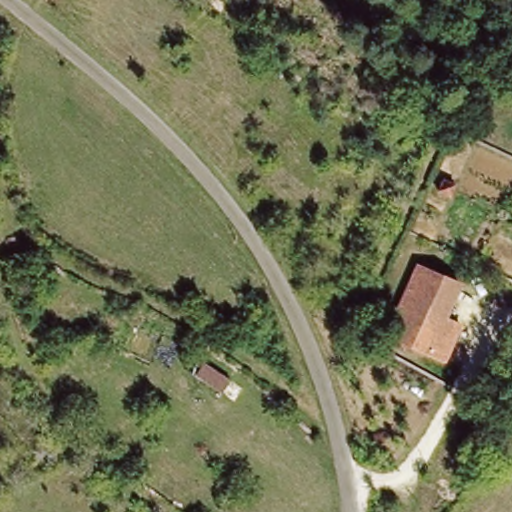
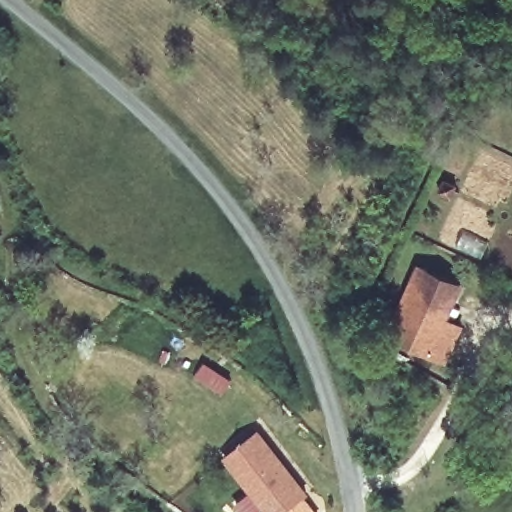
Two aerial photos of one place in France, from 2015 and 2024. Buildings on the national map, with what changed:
unchanged [(456,200),(445,195),(451,184),(463,189),(456,200)]
unchanged [(465,285),(441,335),(399,315),(422,265),(465,285)]
unchanged [(465,326),(447,363),(395,339),(404,318),(441,335),(449,319),(465,326)]
new [(287,512),(266,512),(222,457),(260,427),(310,492),(287,512)]

